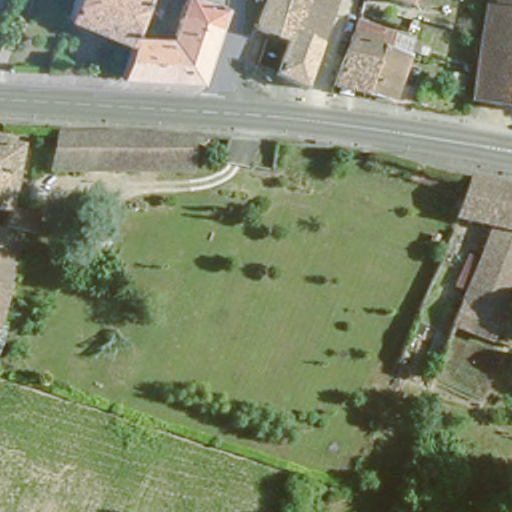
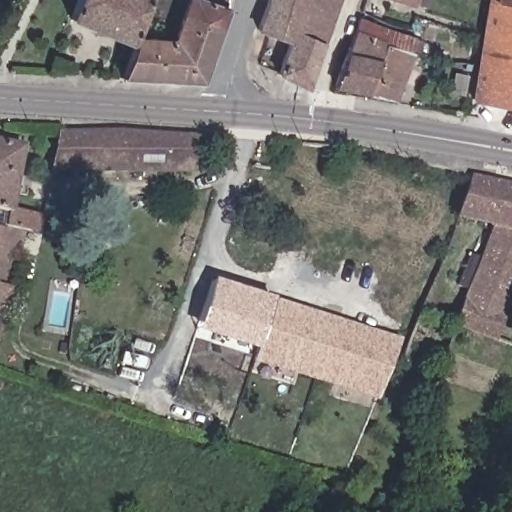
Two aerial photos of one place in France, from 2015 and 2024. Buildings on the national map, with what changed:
unchanged [(134,37),(71,13),(77,0),(150,0),(134,37)]
unchanged [(139,33),(167,38),(184,0),(225,0),(224,5),(194,75),(124,68),(139,33)]
unchanged [(285,28),(252,21),(260,0),(296,0),(285,28)]
unchanged [(314,34),(285,28),(296,0),(327,0),(314,34)]
unchanged [(474,86),(494,0),(512,0),(512,95),(474,86)]
unchanged [(0,17),(0,9),(3,10),(0,17)]
unchanged [(336,80),(353,33),(359,16),(383,24),(378,40),(388,42),(416,50),(415,55),(405,94),(336,80)]
unchanged [(272,57),(285,28),(314,34),(311,45),(300,75),(272,57)]
unchanged [(438,112),(443,90),(454,92),(449,114),(438,112)]
unchanged [(185,166),(117,164),(111,182),(109,191),(50,177),(62,119),(191,128),(185,166)]
unchanged [(7,202),(30,206),(28,223),(21,249),(0,246),(0,131),(21,134),(7,202)]
unchanged [(500,217),(461,207),(479,167),(512,175),(512,298),(498,330),(458,316),(500,217)]
unchanged [(438,240),(434,250),(421,246),(425,235),(438,240)]
unchanged [(0,280),(0,246),(21,249),(12,283),(0,280)]
new [(258,364),(261,354),(194,333),(212,279),(396,338),(376,402),(258,364)]
unchanged [(0,314),(0,280),(12,283),(0,314)]
unchanged [(468,401),(466,400),(429,384),(438,362),(458,316),(498,330),(468,401)]

